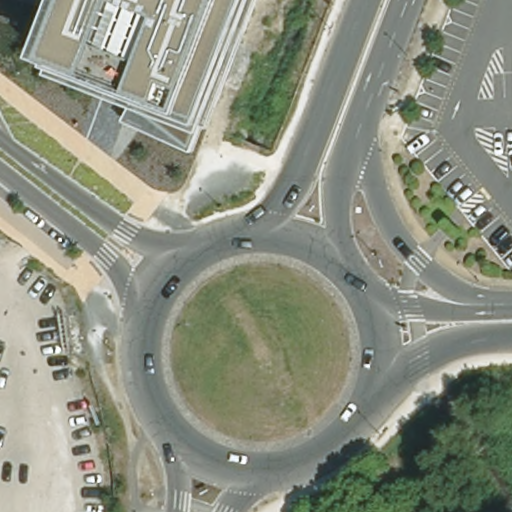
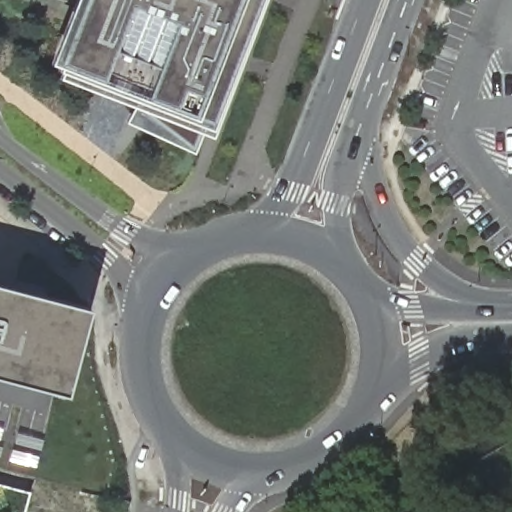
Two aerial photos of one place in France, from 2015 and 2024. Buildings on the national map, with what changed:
unchanged [(125,120),(139,97),(37,59),(62,0),(256,0),(205,132),(191,152),(125,120)]
new [(0,374),(0,283),(79,302),(59,389),(0,374)]
new [(29,512),(0,512),(0,485),(33,493),(29,512)]

